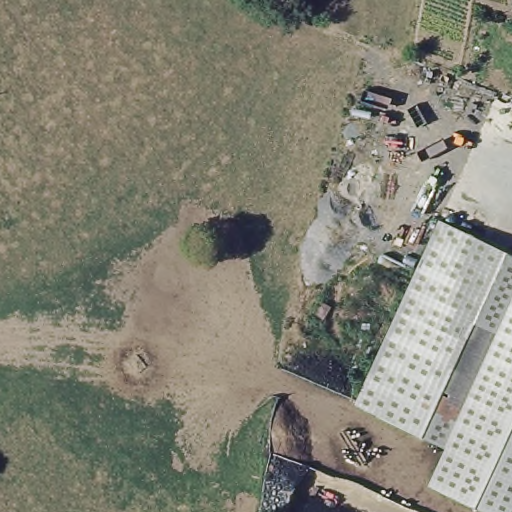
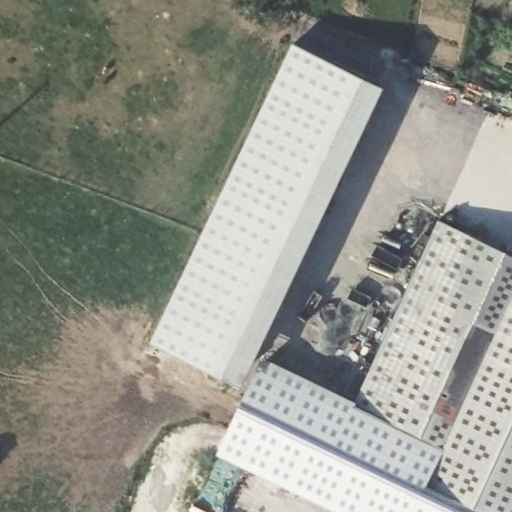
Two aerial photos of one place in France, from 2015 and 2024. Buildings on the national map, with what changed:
new [(153,340),(294,42),(387,88),(243,388),(153,340)]
unchanged [(512,256),(512,512),(494,512),(486,508),(435,485),(452,448),(360,405),(444,221),(512,256)]
new [(452,448),(435,485),(486,508),(494,512),(340,512),(219,453),(266,357),(360,405),(452,448)]

